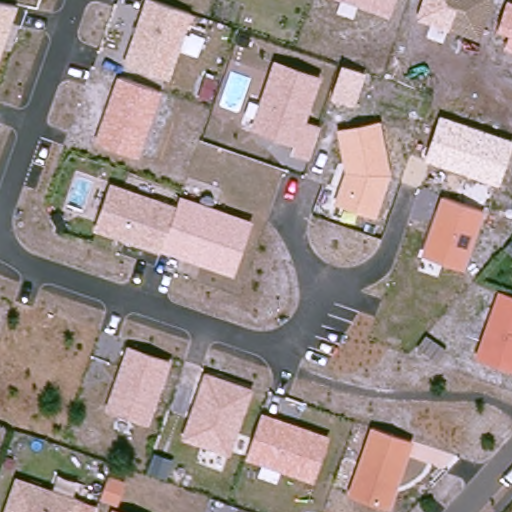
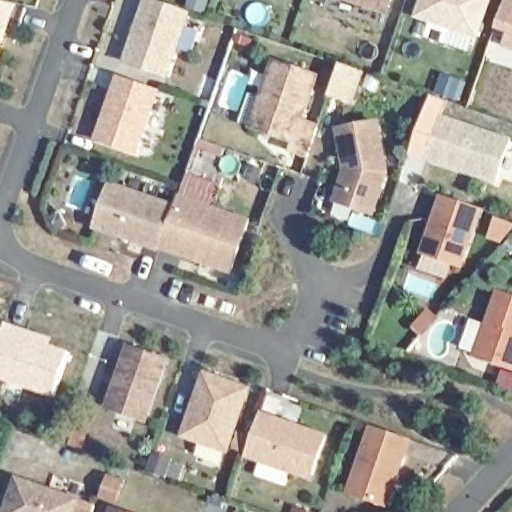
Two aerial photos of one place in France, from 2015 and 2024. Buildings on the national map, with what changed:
unchanged [(170,81),(124,65),(146,0),(149,0),(190,13),(170,81)]
unchanged [(342,0),(395,0),(389,18),(342,0)]
unchanged [(416,20),(423,0),(491,0),(478,41),(416,20)]
unchanged [(510,35),(497,31),(507,0),(512,2),(512,51),(506,49),(510,35)]
unchanged [(0,56),(0,3),(16,6),(0,56)]
unchanged [(321,78),(306,120),(319,127),(308,159),(290,154),(293,144),(252,129),(273,60),(321,78)]
unchanged [(331,98),(341,66),(364,75),(353,105),(331,98)]
unchanged [(160,91),(137,159),(95,141),(95,137),(118,76),(160,91)]
unchanged [(512,139),(512,145),(497,187),(425,160),(440,113),(512,139)]
unchanged [(380,121),(391,176),(376,219),(335,204),(345,172),(336,131),(380,121)]
unchanged [(177,205),(180,194),(252,221),(235,278),(160,254),(95,232),(109,183),(177,205)]
unchanged [(441,196),(486,209),(465,271),(421,254),(441,196)]
unchanged [(496,290),(512,296),(512,370),(475,358),(496,290)]
new [(5,321),(54,338),(51,346),(69,351),(53,398),(0,380),(0,332),(5,321)]
unchanged [(127,347),(173,366),(148,425),(105,410),(127,347)]
unchanged [(205,372),(253,389),(230,453),(181,438),(205,372)]
unchanged [(262,410),(330,434),(313,481),(246,461),(262,410)]
unchanged [(370,427),(411,440),(387,507),(348,493),(370,427)]
unchanged [(46,446),(43,455),(30,450),(33,442),(46,446)]
unchanged [(154,455),(174,461),(166,480),(147,474),(154,455)]
unchanged [(102,495),(106,481),(122,486),(117,502),(101,497),(102,495)]
unchanged [(17,483),(78,504),(75,512),(7,512),(17,483)]

